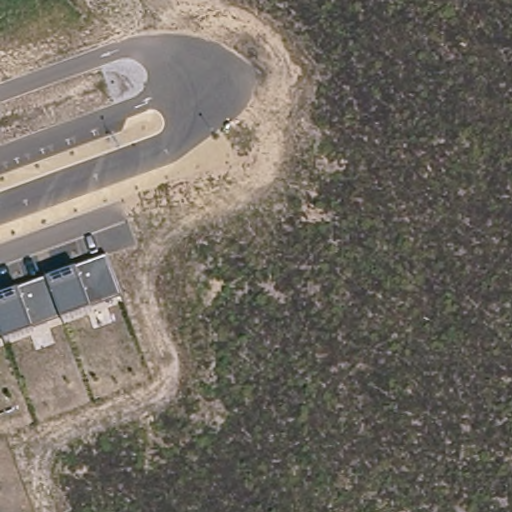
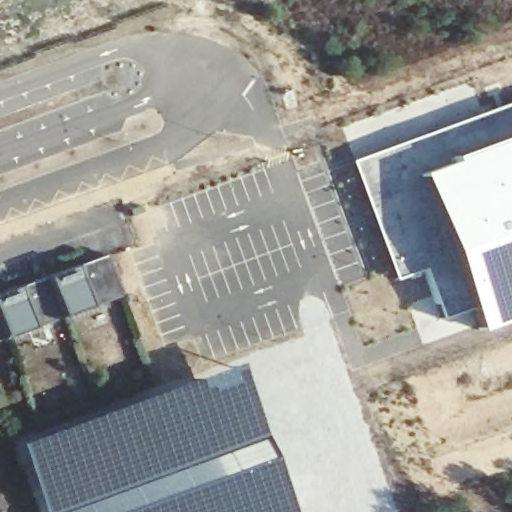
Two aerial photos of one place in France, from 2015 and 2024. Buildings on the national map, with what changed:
new [(475,332),(466,310),(442,320),(425,269),(395,280),(351,162),(512,102),(512,319),(475,332)]
unchanged [(108,254),(124,295),(93,306),(78,265),(108,254)]
unchanged [(63,317),(48,276),(78,265),(93,306),(63,317)]
unchanged [(48,276),(63,317),(35,327),(20,286),(48,276)]
unchanged [(0,323),(0,294),(20,286),(35,327),(5,338),(0,340),(0,323)]
new [(40,512),(15,445),(235,363),(291,512),(40,512)]

